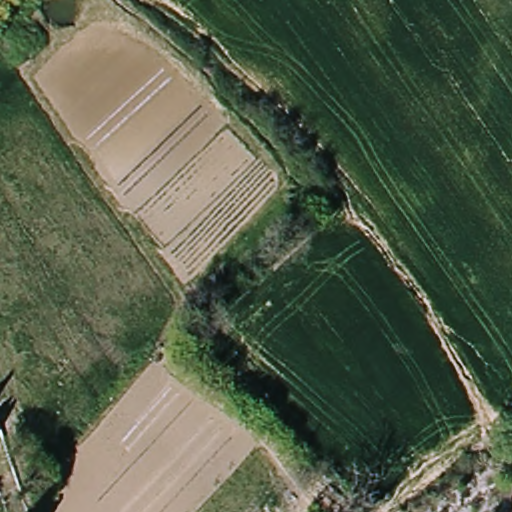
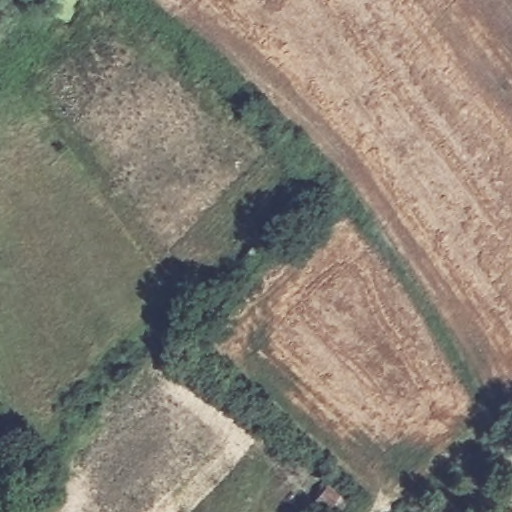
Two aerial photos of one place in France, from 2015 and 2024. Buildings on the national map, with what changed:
[]

